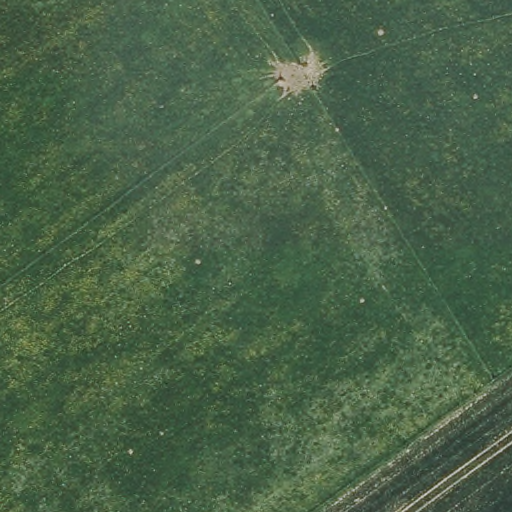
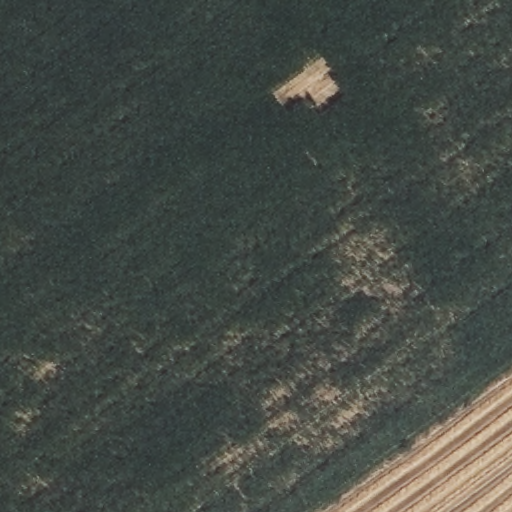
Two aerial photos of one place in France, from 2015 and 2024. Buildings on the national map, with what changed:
[]

